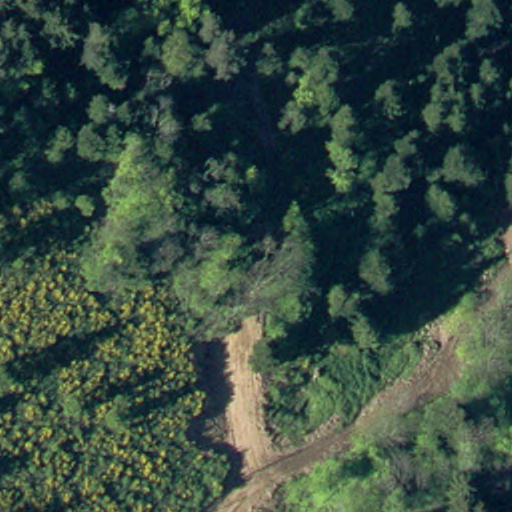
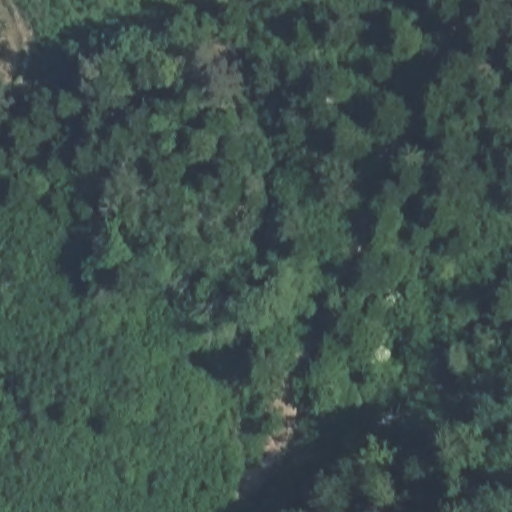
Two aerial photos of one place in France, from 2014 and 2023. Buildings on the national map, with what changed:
unchanged [(255,411),(274,373),(279,364),(307,378),(284,425),(255,411)]

